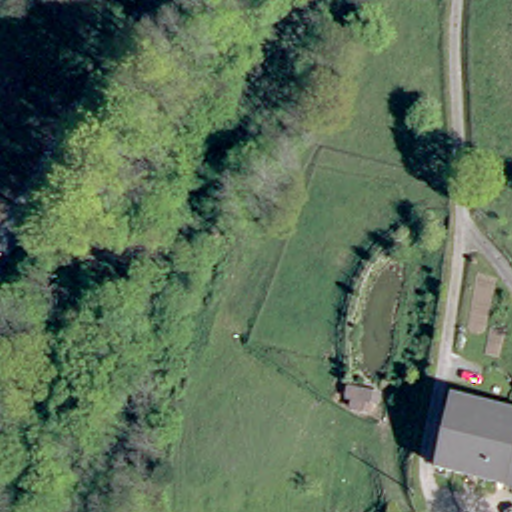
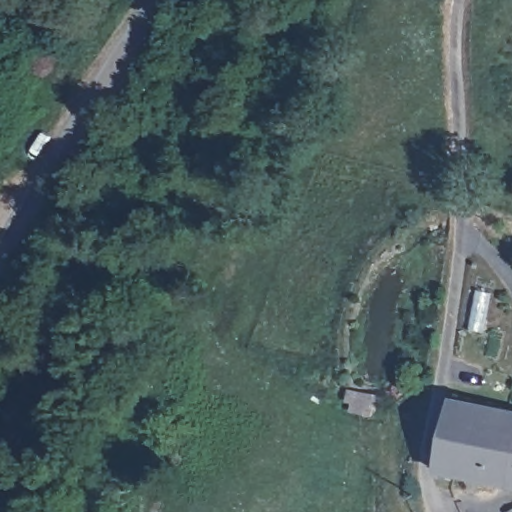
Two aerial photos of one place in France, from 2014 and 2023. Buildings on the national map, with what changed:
unchanged [(443,469),(459,396),(512,410),(512,487),(443,469)]

